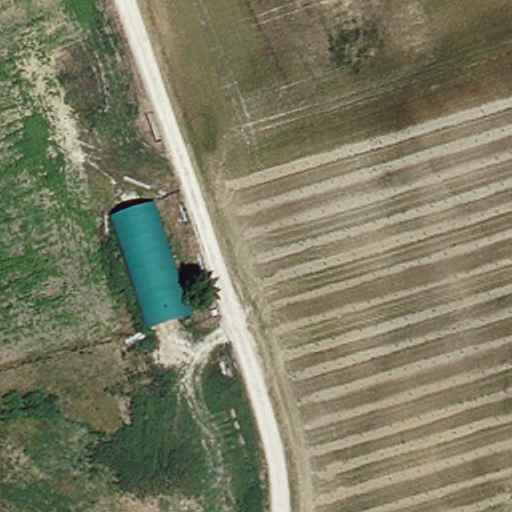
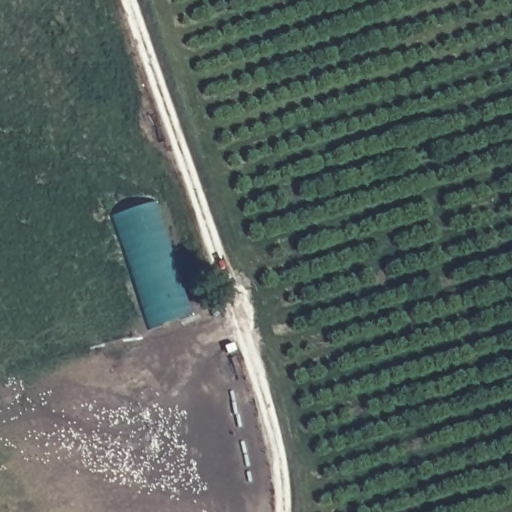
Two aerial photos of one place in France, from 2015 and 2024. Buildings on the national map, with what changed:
unchanged [(102,220),(151,202),(186,317),(140,334),(102,220)]

